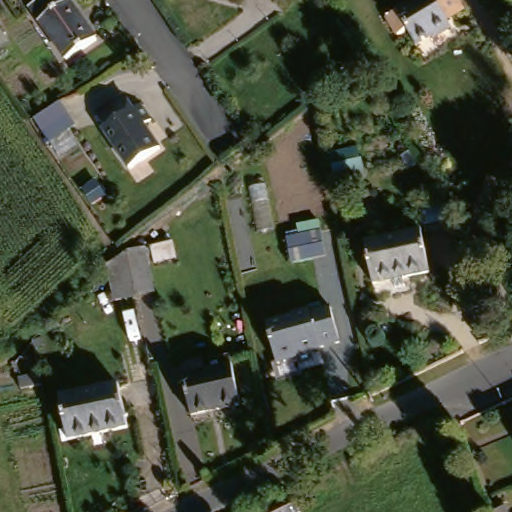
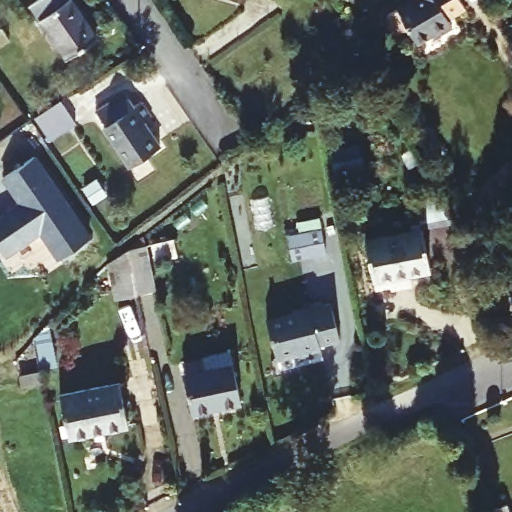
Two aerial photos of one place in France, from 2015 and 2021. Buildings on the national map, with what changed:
unchanged [(45,0),(73,0),(76,4),(80,0),(82,0),(94,14),(88,20),(100,36),(66,61),(29,12),(45,0)]
unchanged [(464,7),(451,17),(454,22),(417,45),(407,31),(402,35),(388,16),(412,1),(412,0),(460,0),(464,7)]
unchanged [(137,112),(142,107),(154,124),(148,129),(162,149),(129,173),(105,136),(108,133),(98,117),(126,97),(137,112)]
unchanged [(24,124),(55,102),(66,116),(36,139),(24,124)]
new [(5,218),(16,210),(0,187),(0,181),(29,162),(84,243),(53,265),(35,237),(0,261),(0,218),(3,216),(5,218)]
unchanged [(413,202),(442,196),(449,224),(420,231),(413,202)]
unchanged [(419,232),(429,276),(380,287),(369,244),(419,232)]
unchanged [(314,236),(321,261),(288,266),(286,242),(314,236)]
unchanged [(118,252),(136,249),(147,295),(129,298),(118,252)]
unchanged [(298,318),(297,313),(311,311),(312,315),(329,311),(338,348),(316,353),(317,361),(297,366),(295,359),(279,362),(269,325),(298,318)]
unchanged [(238,361),(246,401),(197,412),(186,360),(209,354),(211,366),(238,361)]
unchanged [(1,382),(24,377),(28,392),(4,397),(1,382)]
unchanged [(64,395),(121,382),(131,425),(73,438),(64,395)]
unchanged [(294,511),(292,512),(260,512),(259,508),(285,494),(294,511)]
unchanged [(494,496),(500,512),(482,512),(479,502),(494,496)]

